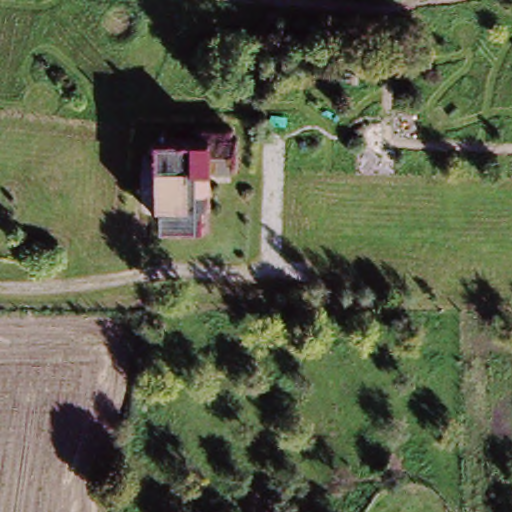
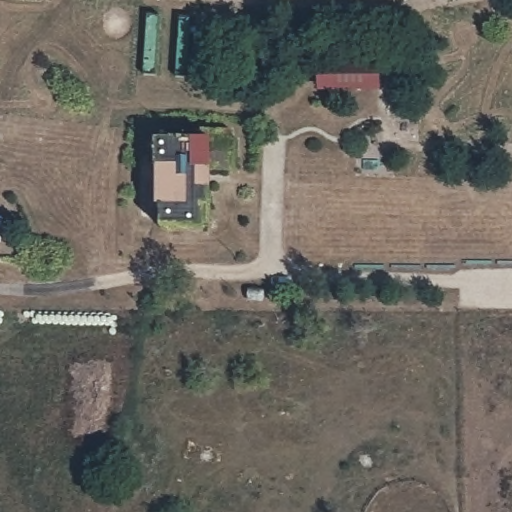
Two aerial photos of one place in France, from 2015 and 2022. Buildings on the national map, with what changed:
unchanged [(245,126),(254,127),(253,154),(223,157),(222,190),(215,190),(218,214),(187,213),(187,154),(181,155),(180,144),(172,134),(187,121),(195,130),(210,128),(210,111),(244,112),(245,126)]

